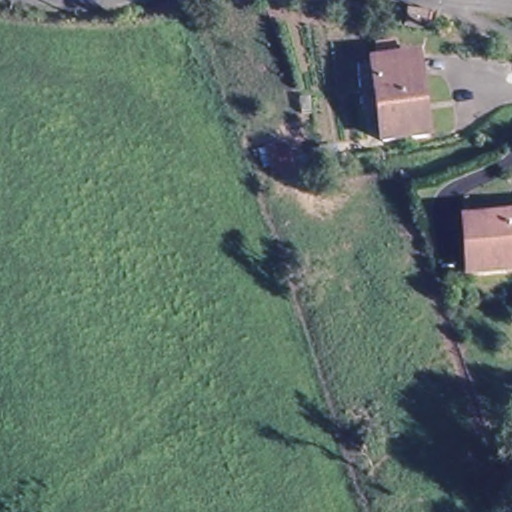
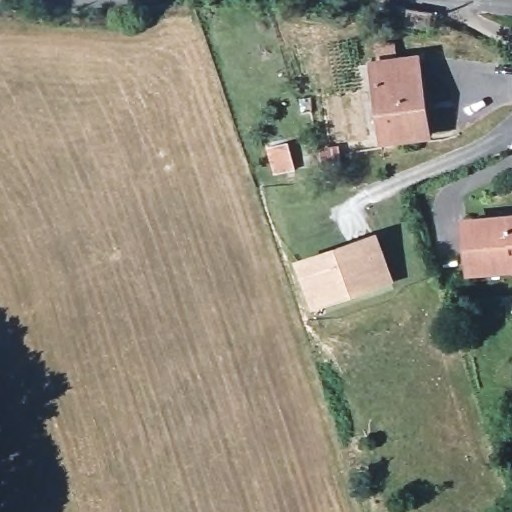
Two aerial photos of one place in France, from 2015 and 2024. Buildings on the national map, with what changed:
unchanged [(428,30),(406,26),(409,10),(431,14),(428,30)]
unchanged [(383,142),(373,63),(371,47),(395,44),(397,60),(417,57),(427,137),(383,142)]
unchanged [(294,168),(274,173),(268,147),(287,143),(294,168)]
unchanged [(339,159),(323,162),(321,151),(337,147),(339,159)]
unchanged [(465,222),(512,218),(512,269),(469,273),(465,222)]
new [(378,231),(394,282),(313,311),(294,261),(378,231)]

